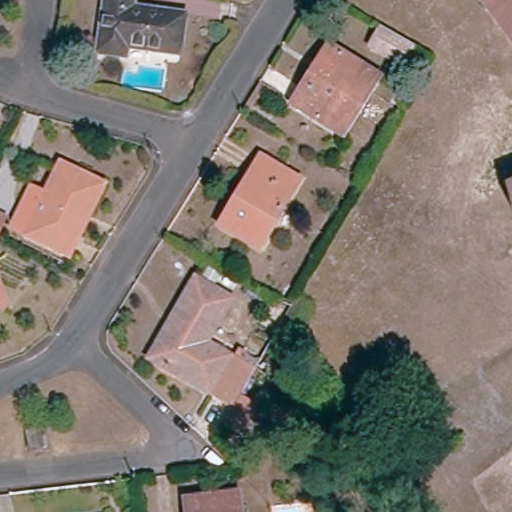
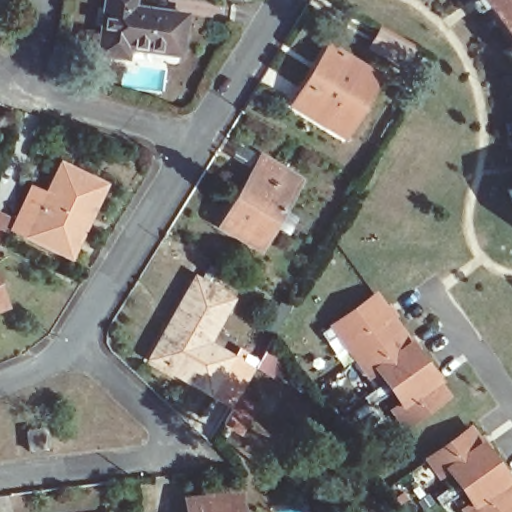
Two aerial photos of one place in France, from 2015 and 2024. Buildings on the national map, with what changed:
unchanged [(105,0),(131,0),(131,3),(183,10),(178,48),(127,41),(126,52),(96,49),(105,0)]
demolished [(471,0),(512,0),(512,52),(471,0)]
new [(478,0),(512,0),(512,45),(478,0)]
unchanged [(415,48),(416,49),(405,68),(370,51),(381,30),(415,48)]
unchanged [(307,93),(313,95),(323,76),(319,71),(330,49),(373,73),(341,135),(297,112),(307,93)]
unchanged [(262,159),(301,180),(263,250),(224,229),(262,159)]
unchanged [(40,189),(54,195),(67,166),(107,184),(77,252),(36,235),(21,228),(40,189)]
demolished [(499,186),(512,183),(512,217),(499,186)]
new [(509,186),(512,185),(512,195),(509,186)]
unchanged [(0,245),(0,217),(14,222),(4,246),(0,245)]
unchanged [(189,280),(223,299),(204,333),(197,329),(192,337),(222,355),(204,389),(147,355),(189,280)]
new [(448,395),(402,428),(388,408),(396,400),(375,371),(366,377),(329,323),(375,291),(448,395)]
unchanged [(0,309),(0,305),(1,308),(0,309)]
unchanged [(208,394),(230,353),(251,364),(229,405),(208,394)]
unchanged [(36,421),(54,418),(58,439),(38,441),(36,421)]
new [(467,500),(447,472),(438,478),(424,457),(470,424),(512,484),(512,512),(464,512),(460,506),(467,500)]
unchanged [(233,507),(234,512),(191,512),(191,511),(233,507)]
unchanged [(243,507),(244,512),(234,512),(233,507),(243,507)]

